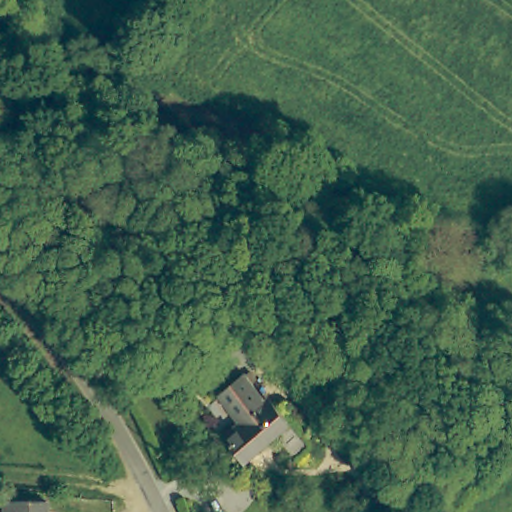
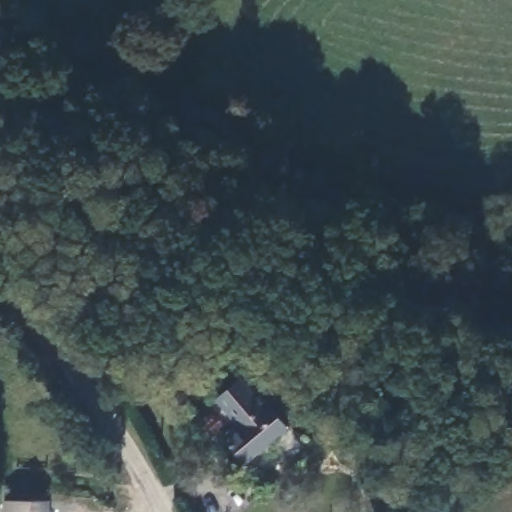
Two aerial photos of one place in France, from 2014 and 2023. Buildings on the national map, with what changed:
unchanged [(247,462),(225,435),(243,419),(224,394),(243,378),(272,414),(278,410),(291,424),(247,462)]
unchanged [(398,512),(377,512),(370,490),(387,485),(398,512)]
unchanged [(10,512),(9,503),(54,500),(55,512),(10,512)]

